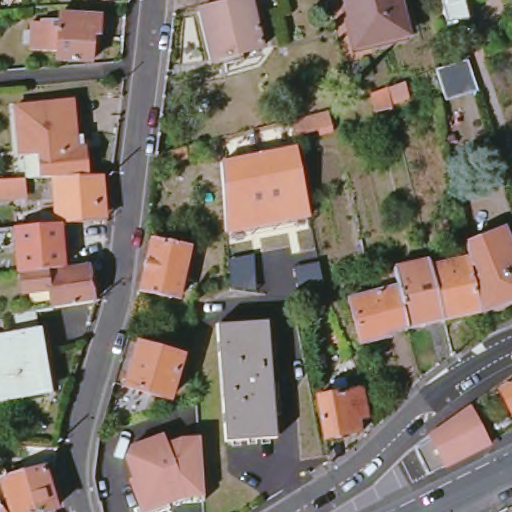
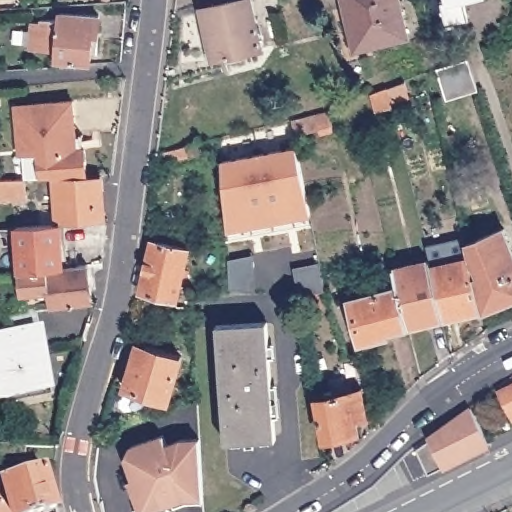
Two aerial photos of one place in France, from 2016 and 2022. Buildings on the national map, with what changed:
unchanged [(262,47),(213,59),(201,9),(235,0),(250,0),(262,47)]
unchanged [(408,34),(356,47),(345,0),(399,0),(408,34)]
unchanged [(461,1),(466,20),(456,22),(456,24),(448,26),(442,1),(446,0),(465,0),(461,1)]
unchanged [(98,37),(93,36),(90,62),(57,59),(58,51),(30,49),(32,22),(40,22),(40,19),(60,20),(61,12),(100,16),(98,37)]
unchanged [(478,90),(446,100),(437,69),(468,59),(478,90)]
unchanged [(373,92),(388,87),(388,88),(404,81),(409,99),(392,105),(376,110),(373,92)]
unchanged [(28,154),(25,155),(20,106),(78,100),(81,147),(89,147),(92,176),(58,177),(30,178),(28,154)]
unchanged [(332,126),(294,136),(291,121),(323,112),(329,111),(332,126)]
unchanged [(221,161),(295,146),(310,218),(227,233),(221,161)]
unchanged [(155,165),(156,154),(186,147),(188,157),(155,165)]
unchanged [(103,220),(64,224),(62,224),(58,177),(92,176),(107,175),(108,195),(110,220),(103,220)]
unchanged [(0,198),(0,180),(29,178),(31,195),(0,198)]
unchanged [(68,267),(25,272),(21,227),(62,224),(64,224),(68,267)]
unchanged [(504,228),(512,247),(512,298),(481,311),(469,258),(466,244),(504,228)]
unchanged [(178,298),(141,291),(153,240),(189,248),(178,298)]
unchanged [(481,311),(444,318),(432,267),(469,258),(481,311)]
unchanged [(444,318),(408,327),(394,272),(393,268),(429,261),(432,267),(444,318)]
unchanged [(98,302),(58,307),(55,289),(27,293),(25,272),(68,267),(93,264),(98,302)]
unchanged [(408,327),(388,332),(389,335),(360,342),(349,298),(363,295),(361,285),(369,282),(368,278),(394,272),(408,327)]
unchanged [(0,399),(0,336),(8,335),(5,315),(35,310),(43,350),(37,351),(44,392),(0,399)]
unchanged [(276,436),(226,440),(217,327),(268,323),(276,436)]
unchanged [(169,398),(126,386),(139,342),(182,356),(169,398)]
unchanged [(510,411),(500,391),(503,388),(512,383),(512,415),(510,411)]
unchanged [(358,418),(359,432),(325,438),(318,397),(361,390),(366,417),(358,418)]
unchanged [(439,455),(430,436),(471,407),(489,443),(456,461),(445,466),(439,455)]
unchanged [(184,497),(143,512),(142,512),(130,480),(134,478),(126,456),(130,447),(163,435),(167,445),(181,440),(199,438),(203,496),(184,497)]
unchanged [(54,465),(25,461),(26,447),(57,449),(54,465)]
unchanged [(42,512),(10,512),(2,480),(0,480),(6,500),(0,503),(0,502),(0,469),(4,468),(7,477),(43,467),(49,488),(55,508),(42,512)]
unchanged [(0,512),(0,505),(5,512),(0,512)]

